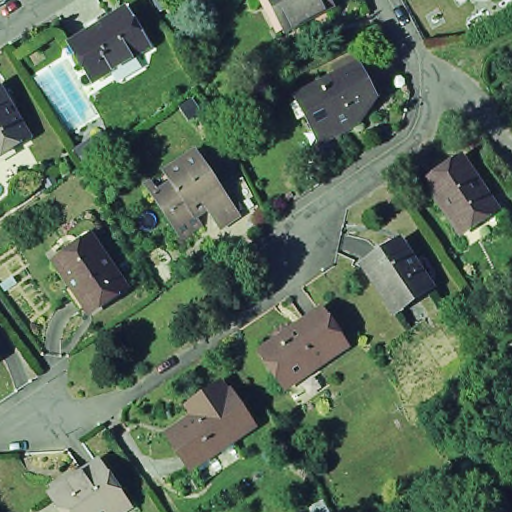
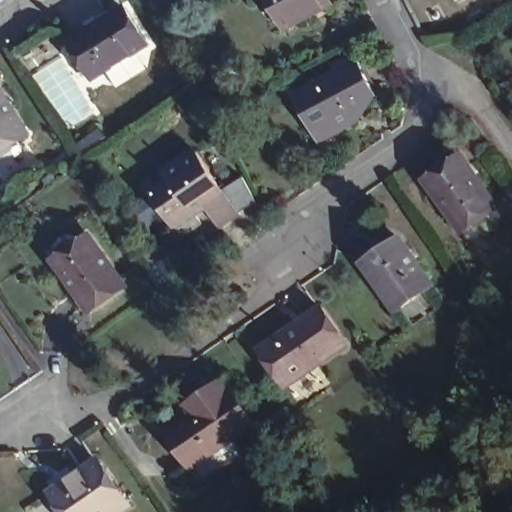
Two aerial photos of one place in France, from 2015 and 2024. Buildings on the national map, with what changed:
unchanged [(297,24),(290,28),(275,0),(335,0),(337,3),(297,24)]
unchanged [(68,41),(123,8),(146,45),(92,79),(68,41)]
unchanged [(318,134),(300,98),(362,66),(380,100),(355,112),(361,125),(337,138),(324,145),(318,134)]
unchanged [(0,152),(0,85),(31,134),(12,145),(0,152)]
unchanged [(234,213),(217,224),(203,205),(192,214),(197,221),(176,234),(142,183),(192,149),(234,213)]
unchanged [(467,167),(499,212),(462,238),(432,191),(467,167)]
unchanged [(86,309),(55,265),(74,252),(92,239),(98,249),(122,284),(86,309)]
unchanged [(392,315),(360,269),(398,245),(429,290),(392,315)]
unchanged [(265,357),(326,314),(352,350),(290,393),(265,357)]
unchanged [(266,424),(202,465),(179,430),(203,414),(197,404),(231,382),(237,391),(242,388),(266,424)]
unchanged [(50,497),(100,464),(130,508),(123,512),(61,512),(50,497)]

